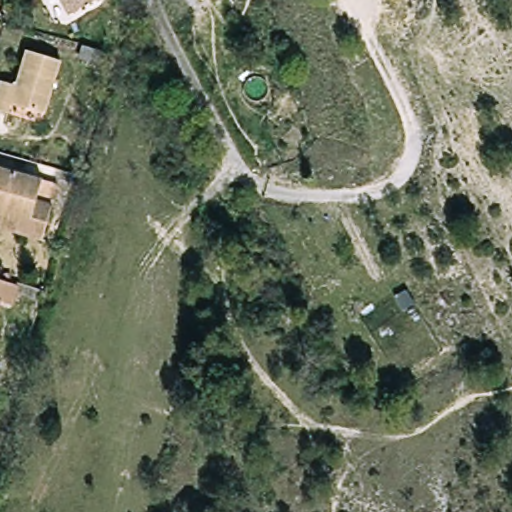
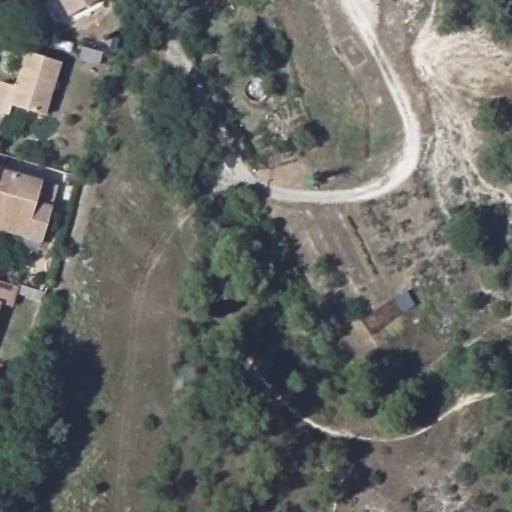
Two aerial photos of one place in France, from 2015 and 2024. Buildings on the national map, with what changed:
unchanged [(63,0),(107,0),(108,1),(74,18),(63,0)]
unchanged [(0,91),(2,82),(20,86),(30,53),(63,62),(49,113),(13,103),(11,111),(0,109),(0,91)]
unchanged [(40,247),(24,242),(22,247),(0,241),(0,188),(37,198),(31,221),(46,225),(40,247)]
unchanged [(0,332),(0,280),(24,286),(18,306),(8,304),(0,332)]
unchanged [(390,299),(404,291),(419,312),(404,319),(390,299)]

